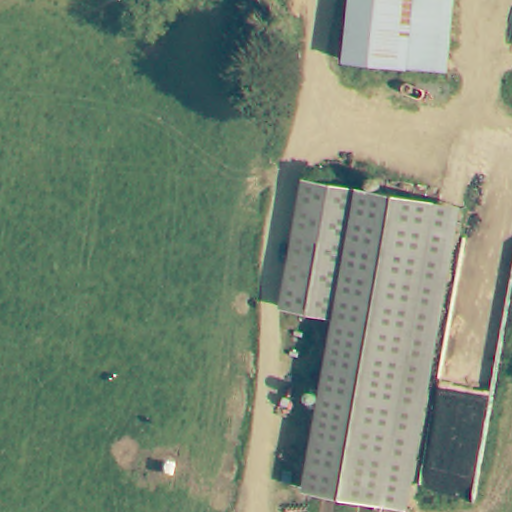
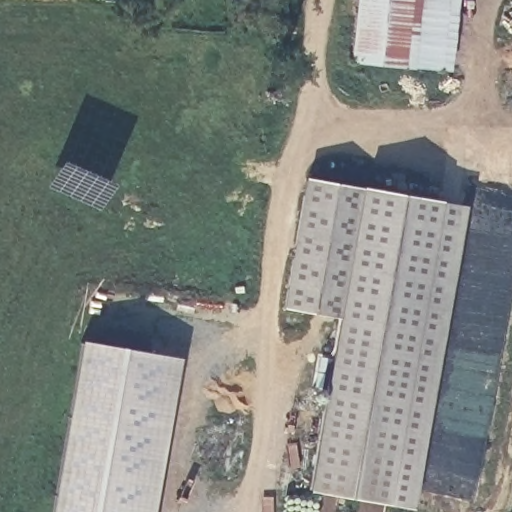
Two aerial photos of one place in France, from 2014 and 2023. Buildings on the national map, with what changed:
unchanged [(357,66),(362,0),(454,0),(447,75),(357,66)]
unchanged [(338,320),(282,311),(302,181),(358,190),(338,320)]
unchanged [(460,206),(413,508),(312,492),(338,320),(358,190),(460,206)]
new [(181,358),(154,512),(52,512),(82,340),(181,358)]

